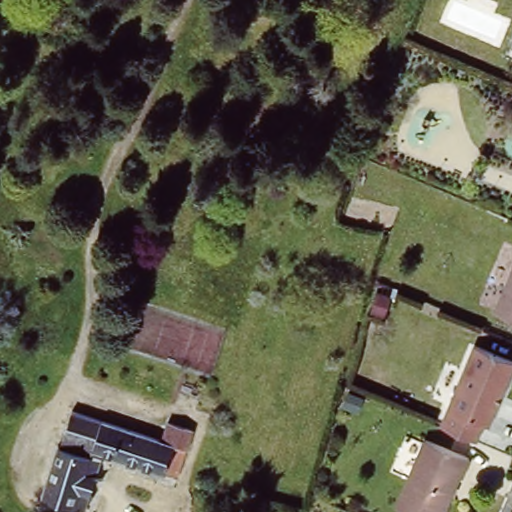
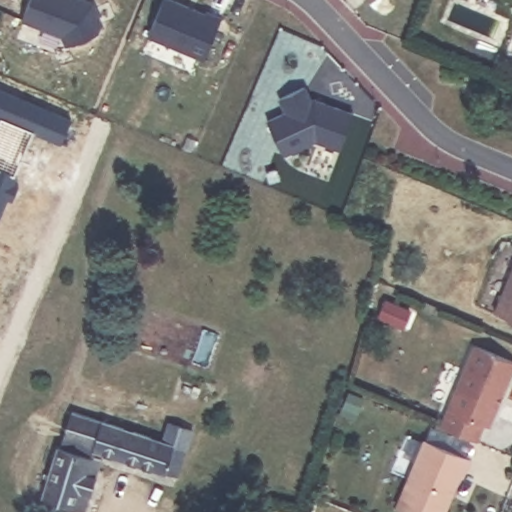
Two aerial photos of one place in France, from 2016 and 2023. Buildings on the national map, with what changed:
new [(62,35),(20,19),(28,0),(86,0),(94,3),(103,27),(66,46),(62,35)]
new [(148,37),(162,0),(174,0),(203,11),(204,10),(221,17),(204,60),(148,37)]
new [(318,140),(283,156),(264,121),(282,112),(276,99),(304,85),(311,98),(351,113),(339,150),(318,140)]
unchanged [(512,319),(495,311),(512,272),(512,319)]
unchanged [(481,344),(512,358),(512,380),(493,425),(488,423),(480,440),(446,424),(481,344)]
unchanged [(73,412),(164,441),(168,428),(171,419),(196,427),(193,436),(178,476),(94,448),(92,456),(99,458),(83,510),(40,497),(58,445),(61,447),(73,412)]
unchanged [(468,456),(460,473),(457,471),(440,512),(406,512),(394,506),(424,437),(468,456)]

